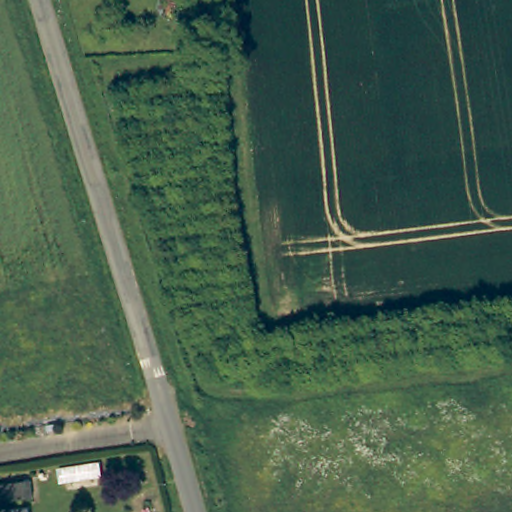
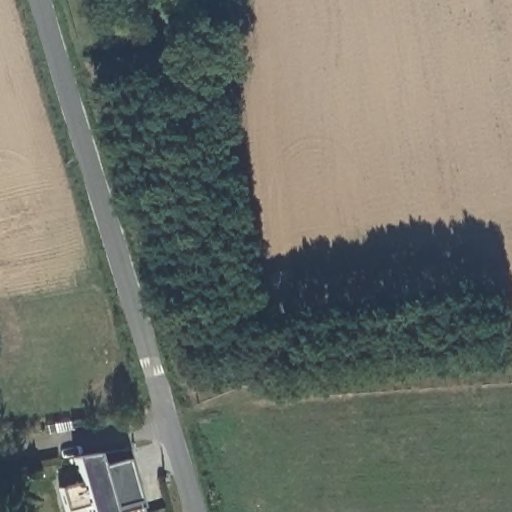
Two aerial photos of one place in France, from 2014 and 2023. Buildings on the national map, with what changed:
new [(142,507),(126,512),(89,512),(88,506),(64,511),(58,489),(81,481),(74,458),(96,454),(126,448),(142,507)]
demolished [(32,496),(2,501),(0,488),(0,484),(30,480),(32,496)]

